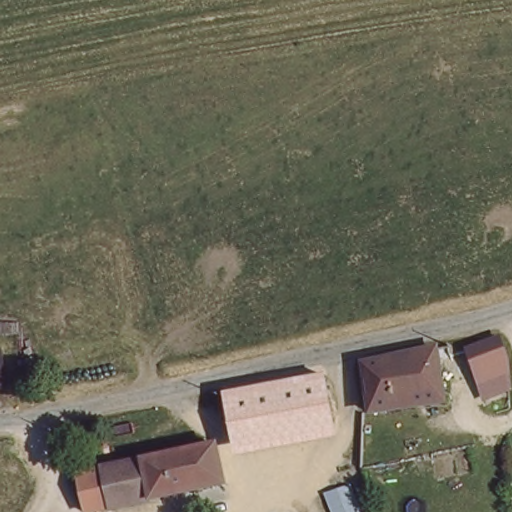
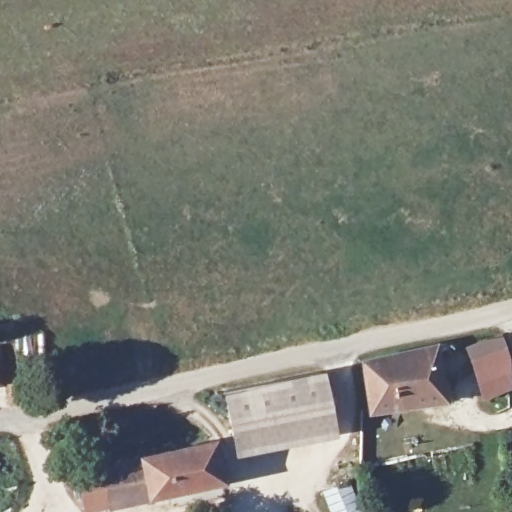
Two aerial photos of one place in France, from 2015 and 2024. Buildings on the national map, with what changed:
unchanged [(509,353),(477,367),(470,344),(502,330),(509,353)]
unchanged [(448,389),(377,406),(366,358),(438,342),(448,389)]
unchanged [(9,383),(0,388),(0,366),(9,383)]
unchanged [(238,446),(228,393),(323,372),(331,420),(286,430),(288,443),(272,446),(251,443),(238,446)]
unchanged [(91,511),(86,512),(84,512),(77,473),(82,472),(217,442),(225,481),(91,511)]

